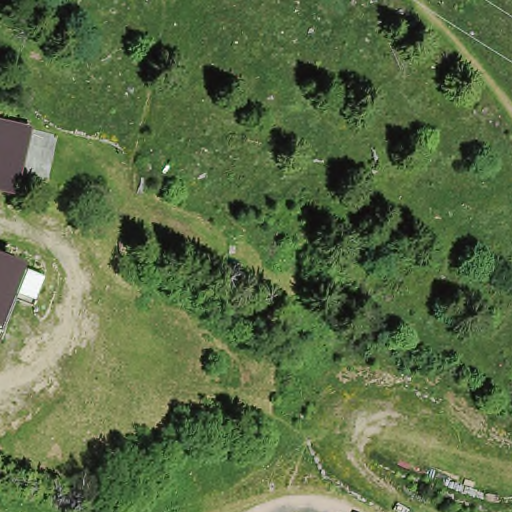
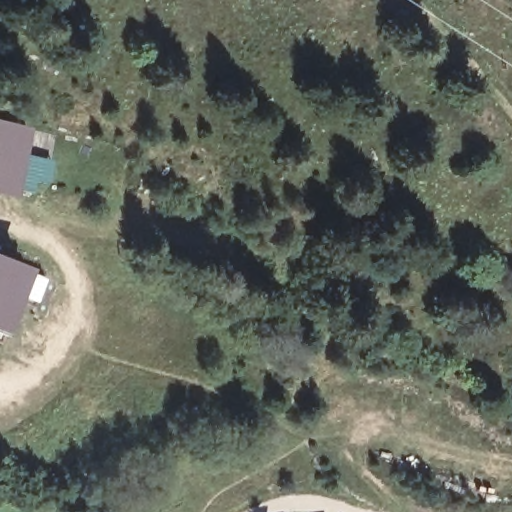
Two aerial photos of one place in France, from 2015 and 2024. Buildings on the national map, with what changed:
unchanged [(26,125),(10,192),(0,190),(0,119),(26,125)]
unchanged [(0,332),(0,240),(8,243),(4,254),(39,266),(30,291),(14,336),(0,332)]

